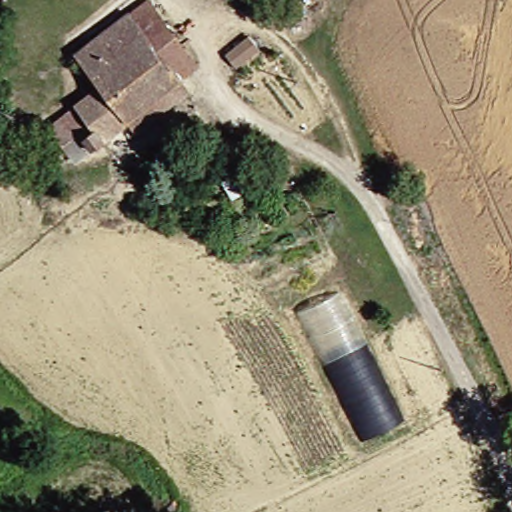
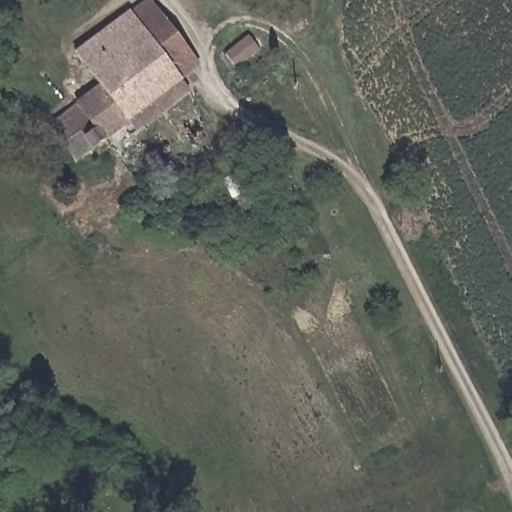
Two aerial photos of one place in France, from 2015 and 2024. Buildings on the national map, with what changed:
unchanged [(155,0),(204,66),(189,80),(132,8),(143,0),(155,0)]
unchanged [(89,153),(56,110),(90,84),(68,55),(132,8),(189,80),(126,126),(89,153)]
unchanged [(189,80),(196,94),(138,142),(126,126),(189,80)]
new [(407,419),(365,442),(300,313),(345,291),(407,419)]

